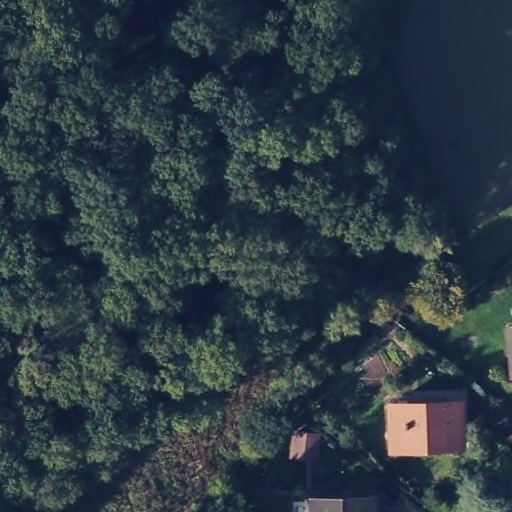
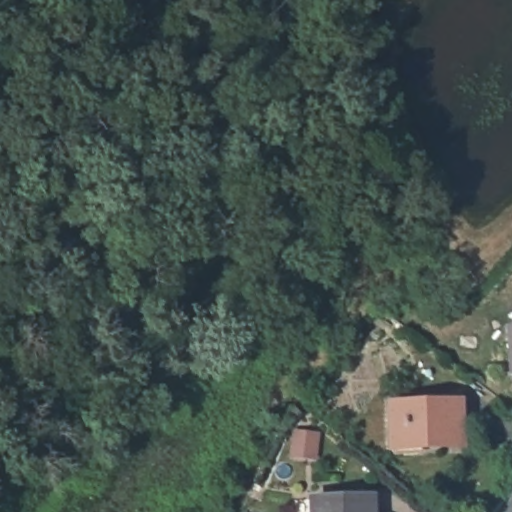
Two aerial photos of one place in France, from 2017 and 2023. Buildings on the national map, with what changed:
unchanged [(390,402),(460,400),(462,443),(392,445),(390,402)]
unchanged [(315,437),(313,458),(293,455),(295,435),(315,437)]
unchanged [(377,495),(378,512),(316,512),(316,497),(377,495)]

